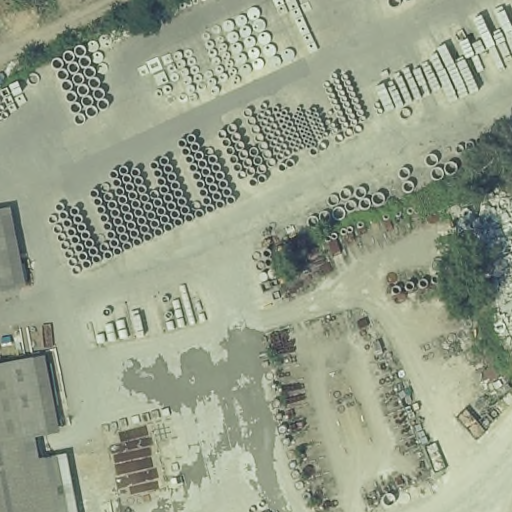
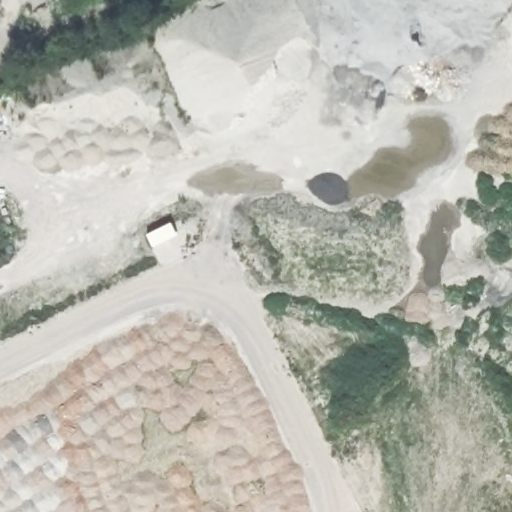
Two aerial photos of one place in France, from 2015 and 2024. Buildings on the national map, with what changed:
demolished [(26,288),(0,295),(0,210),(12,207),(26,288)]
new [(170,225),(176,236),(152,247),(147,236),(170,225)]
demolished [(61,453),(69,455),(81,512),(0,512),(0,365),(45,358),(61,453)]

